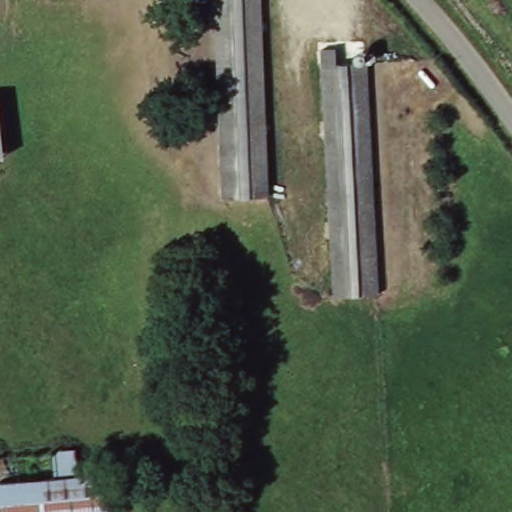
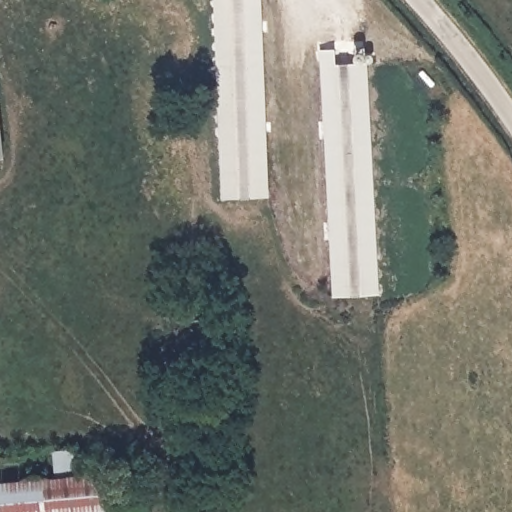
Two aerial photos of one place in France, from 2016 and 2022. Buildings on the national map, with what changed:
unchanged [(224,196),(213,0),(257,0),(268,196),(224,196)]
unchanged [(345,54),(345,69),(374,68),(383,293),(342,294),(331,54),(345,54)]
unchanged [(3,157),(0,157),(0,127),(3,157)]
unchanged [(49,463),(52,488),(1,492),(0,480),(0,468),(49,463)]
unchanged [(52,488),(105,484),(109,512),(5,512),(1,492),(52,488)]

